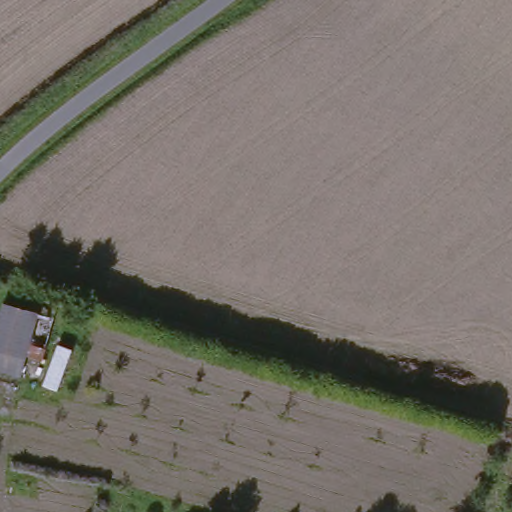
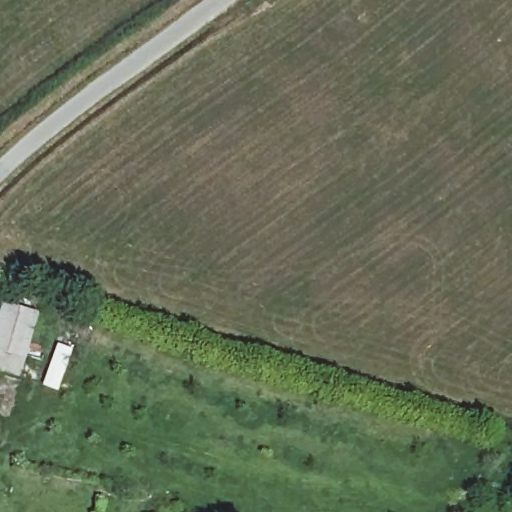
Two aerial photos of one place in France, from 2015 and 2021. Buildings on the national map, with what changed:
unchanged [(40,376),(21,371),(17,385),(0,380),(0,316),(33,326),(52,332),(40,376)]

